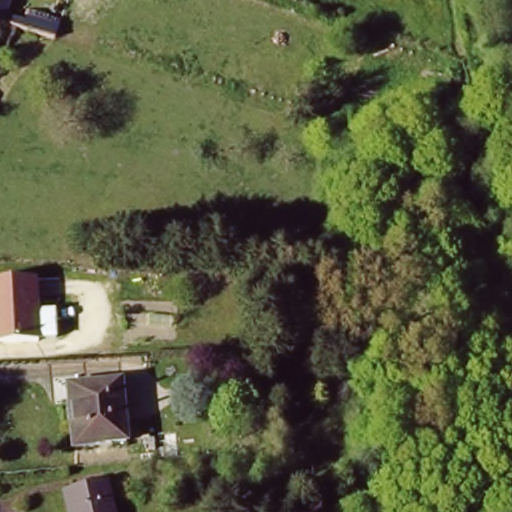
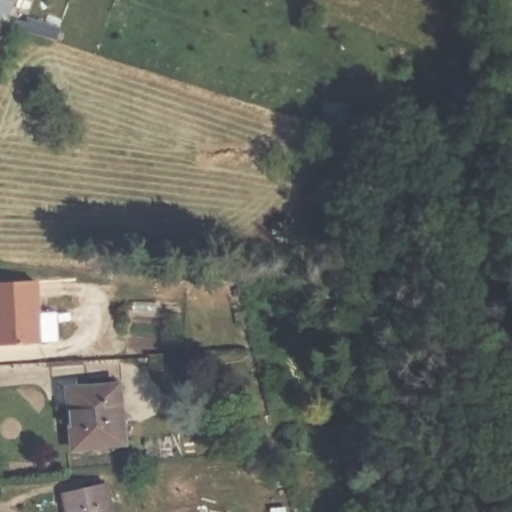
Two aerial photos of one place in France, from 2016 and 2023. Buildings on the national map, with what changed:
unchanged [(0,27),(0,0),(15,0),(4,29),(0,27)]
unchanged [(0,56),(0,30),(9,34),(0,56)]
unchanged [(4,82),(0,81),(0,62),(10,66),(4,82)]
unchanged [(44,312),(45,343),(45,345),(0,347),(0,284),(42,283),(44,312)]
unchanged [(120,381),(127,440),(75,446),(72,430),(68,428),(64,387),(120,381)]
unchanged [(104,485),(109,512),(66,512),(62,494),(104,485)]

